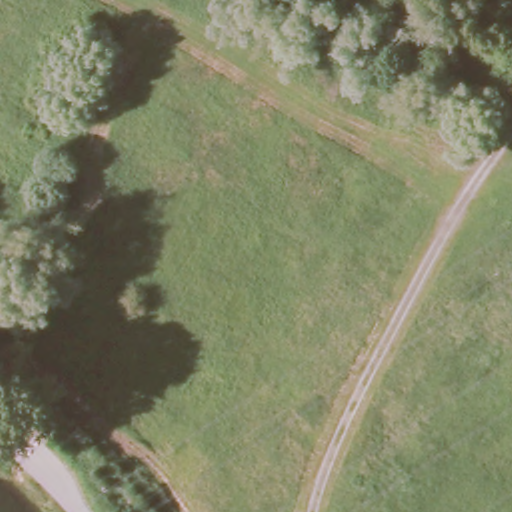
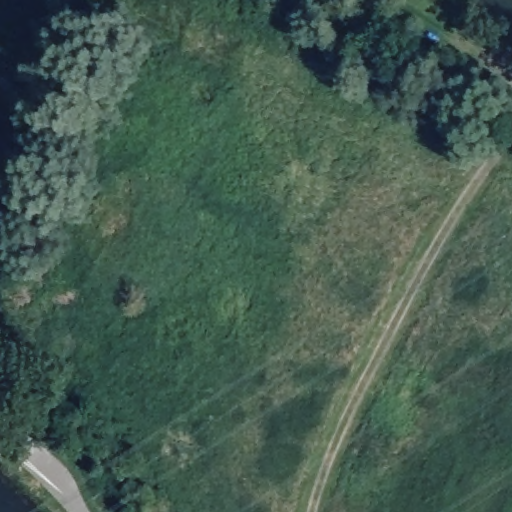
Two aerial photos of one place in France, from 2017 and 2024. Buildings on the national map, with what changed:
[]

